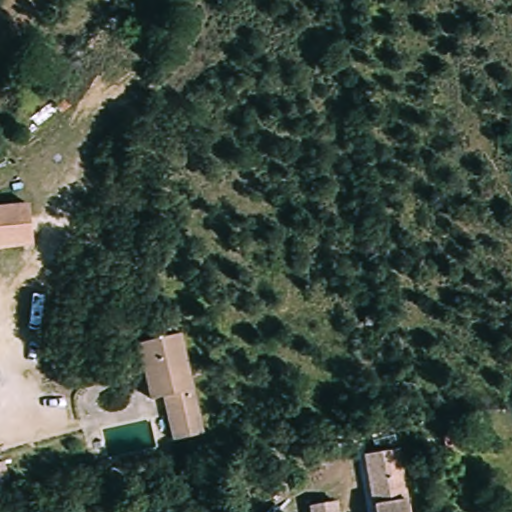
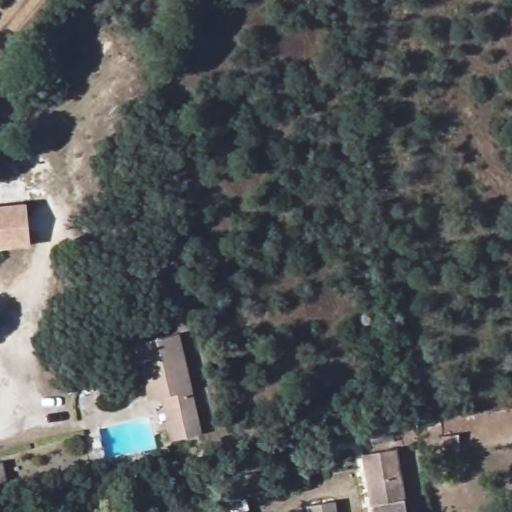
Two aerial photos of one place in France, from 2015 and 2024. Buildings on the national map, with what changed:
unchanged [(20,202),(27,244),(0,249),(0,207),(20,202)]
unchanged [(201,430),(172,436),(162,396),(148,399),(135,342),(176,333),(201,430)]
unchanged [(361,462),(392,458),(399,512),(367,512),(361,462)]

